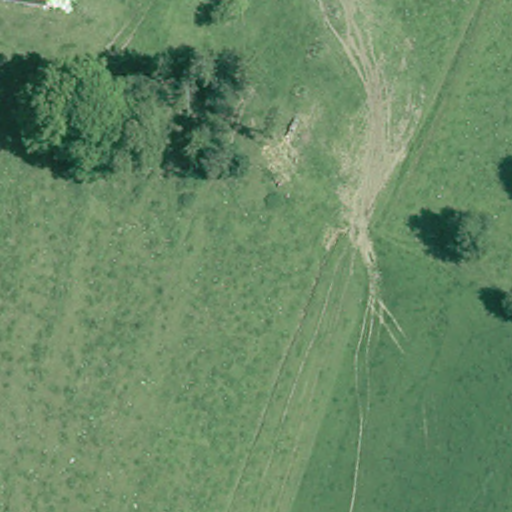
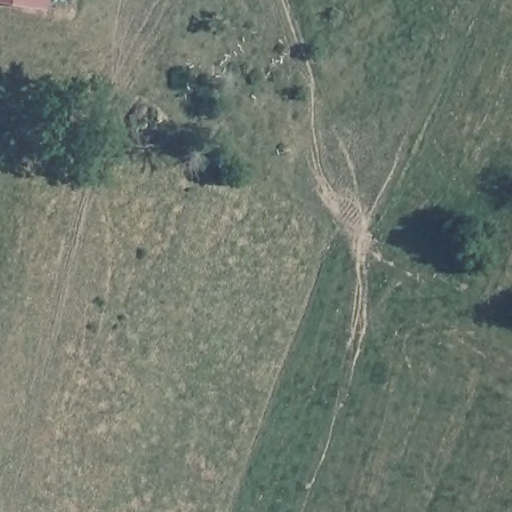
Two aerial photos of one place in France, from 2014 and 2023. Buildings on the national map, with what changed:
unchanged [(48,10),(0,2),(0,0),(49,0),(48,10)]

